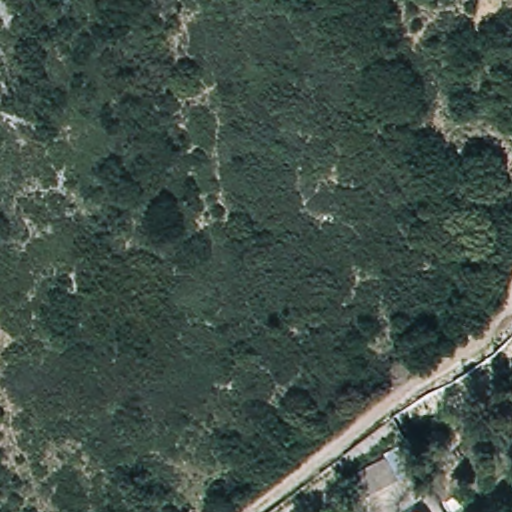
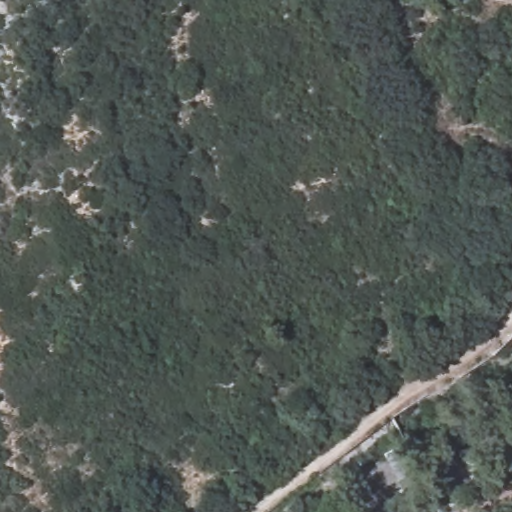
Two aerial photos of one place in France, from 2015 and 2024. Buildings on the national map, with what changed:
unchanged [(345,480),(391,458),(401,481),(356,502),(345,480)]

